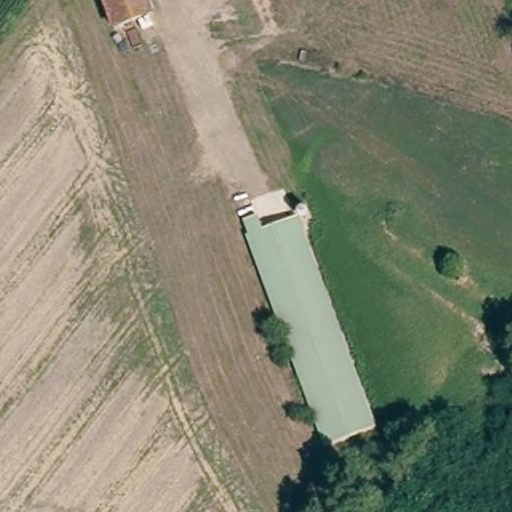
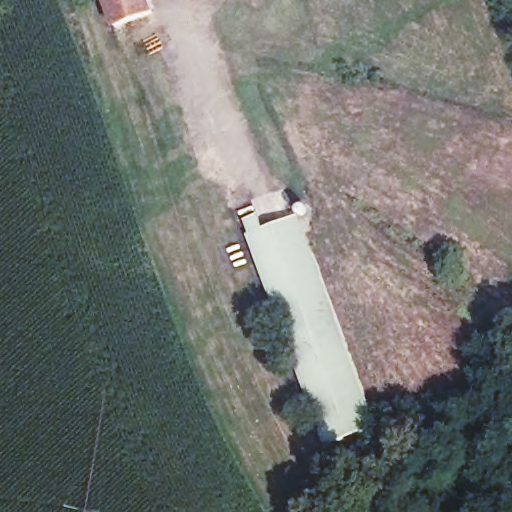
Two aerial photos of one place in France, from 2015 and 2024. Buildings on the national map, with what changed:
unchanged [(148,0),(109,18),(103,0),(148,0)]
unchanged [(326,449),(245,237),(296,216),(380,428),(326,449)]

